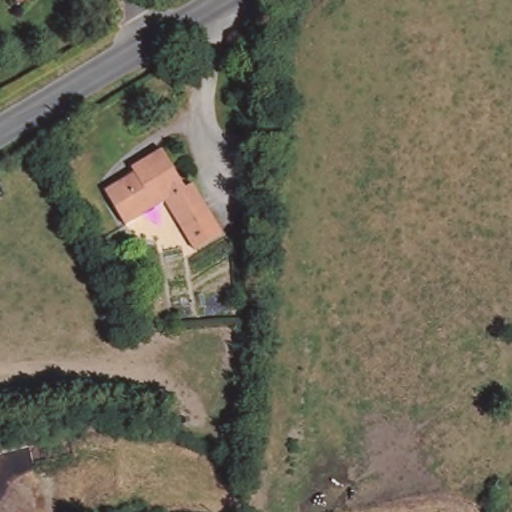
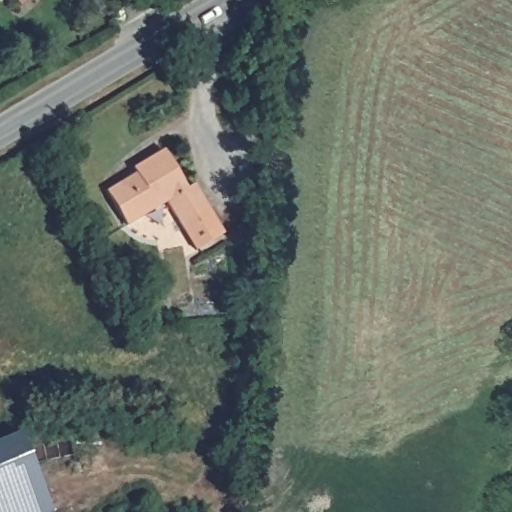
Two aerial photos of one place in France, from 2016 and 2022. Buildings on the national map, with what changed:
unchanged [(9,0),(29,0),(19,10),(9,0)]
unchanged [(135,167),(165,150),(188,189),(194,185),(223,235),(195,251),(167,202),(129,225),(106,189),(138,170),(135,167)]
new [(49,512),(0,512),(0,441),(15,435),(49,512)]

